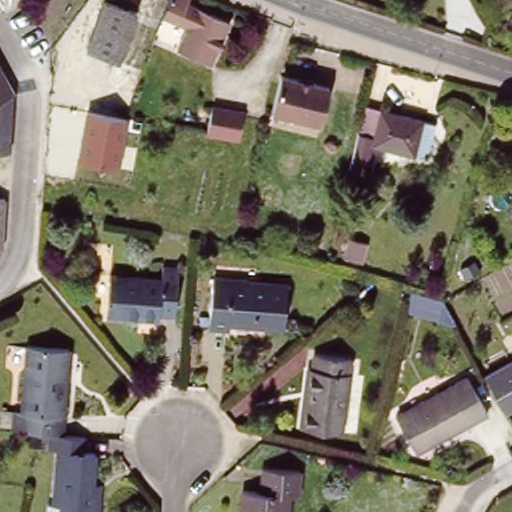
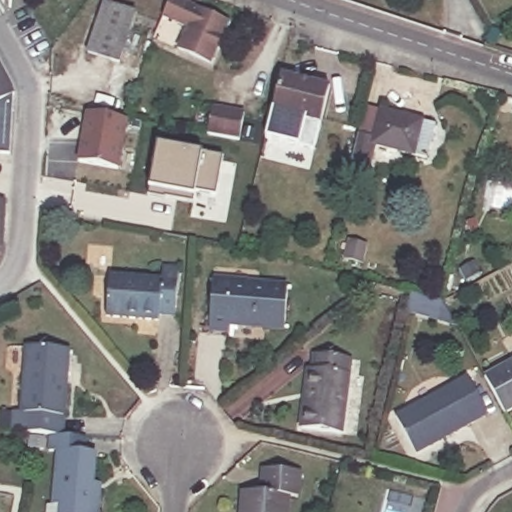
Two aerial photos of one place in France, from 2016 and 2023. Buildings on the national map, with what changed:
unchanged [(212,69),(180,54),(188,32),(165,22),(175,2),(175,0),(193,0),(190,9),(230,28),(212,69)]
unchanged [(118,66),(89,56),(105,8),(132,17),(135,18),(128,38),(118,66)]
unchanged [(16,153),(0,152),(0,57),(20,92),(16,153)]
unchanged [(331,87),(320,126),(274,114),(285,75),(331,87)]
unchanged [(245,116),(240,143),(207,137),(212,110),(245,116)]
unchanged [(366,110),(435,127),(426,162),(407,158),(403,170),(380,164),(371,193),(346,187),(366,110)]
unchanged [(128,118),(121,170),(78,163),(85,111),(128,118)]
new [(225,157),(217,194),(195,189),(193,197),(165,192),(163,199),(146,196),(156,144),(225,157)]
unchanged [(8,214),(8,229),(7,237),(7,238),(7,243),(7,248),(5,251),(0,259),(0,199),(9,199),(8,214)]
unchanged [(160,313),(160,318),(107,315),(109,275),(162,278),(162,268),(179,268),(177,298),(176,314),(160,313)]
unchanged [(208,330),(210,280),(230,282),(230,288),(243,289),(243,282),(286,285),(284,328),(231,326),(230,331),(208,330)]
unchanged [(408,291),(441,300),(450,315),(405,303),(408,291)]
unchanged [(17,430),(17,410),(27,410),(31,347),(73,350),(68,434),(55,433),(17,430)]
unchanged [(305,428),(312,367),(317,368),(319,354),(355,358),(346,433),(305,428)]
unchanged [(512,356),(512,403),(504,407),(484,372),(512,356)]
unchanged [(397,417),(467,378),(485,411),(416,451),(397,417)]
unchanged [(104,512),(65,512),(65,506),(60,505),(62,451),(55,451),(55,433),(68,434),(91,435),(90,451),(100,451),(98,482),(105,482),(105,489),(104,512)]
unchanged [(266,492),(269,468),(305,471),(303,496),(295,495),(293,512),(249,512),(250,491),(266,492)]

